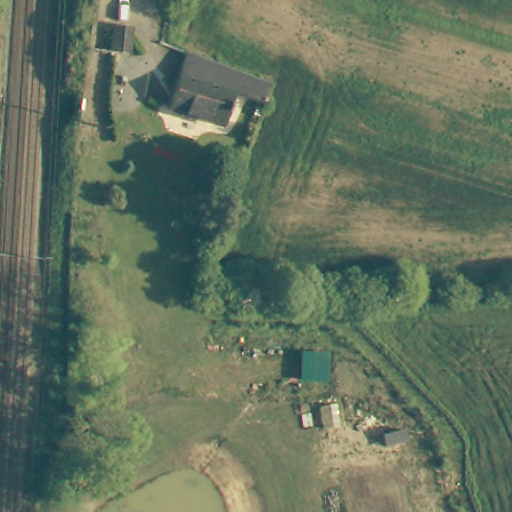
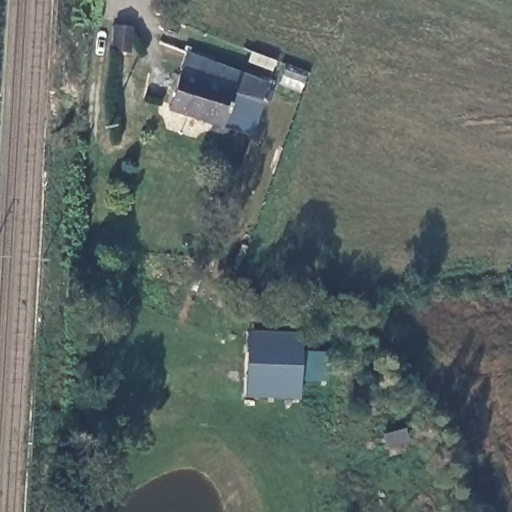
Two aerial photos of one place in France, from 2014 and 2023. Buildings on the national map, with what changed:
unchanged [(268,80),(262,98),(231,89),(222,124),(169,108),(186,53),(268,80)]
new [(249,330),(304,333),(303,350),(331,352),(329,382),(303,380),(301,399),(247,397),(249,330)]

